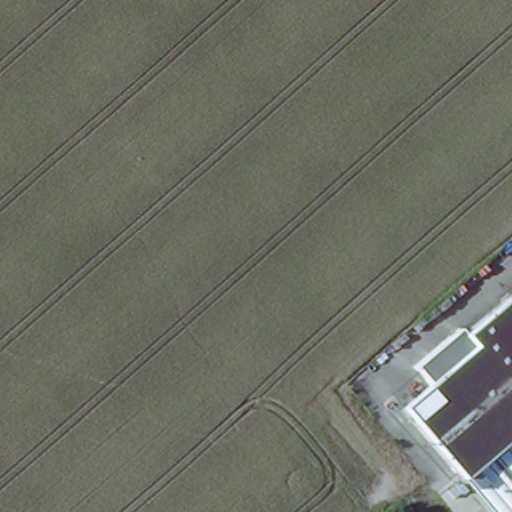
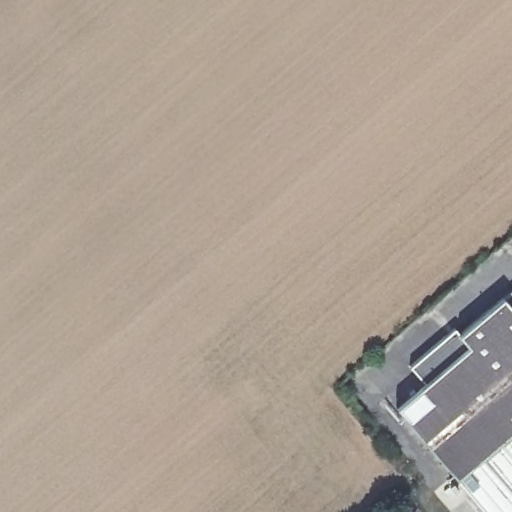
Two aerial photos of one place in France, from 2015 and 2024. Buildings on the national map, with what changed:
unchanged [(396,408),(468,347),(458,335),(512,289),(512,400),(441,461),(396,408)]
unchanged [(512,400),(512,512),(485,512),(441,461),(512,400)]

